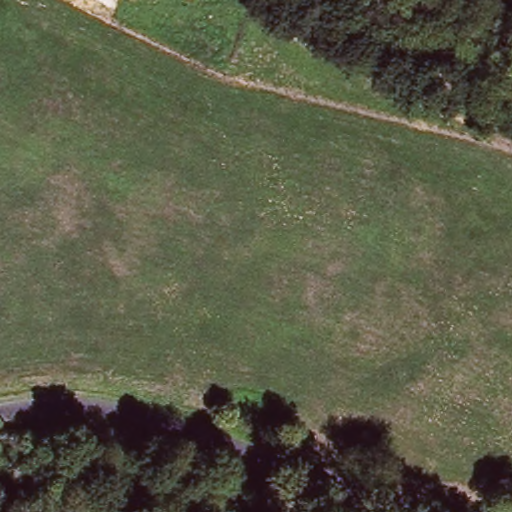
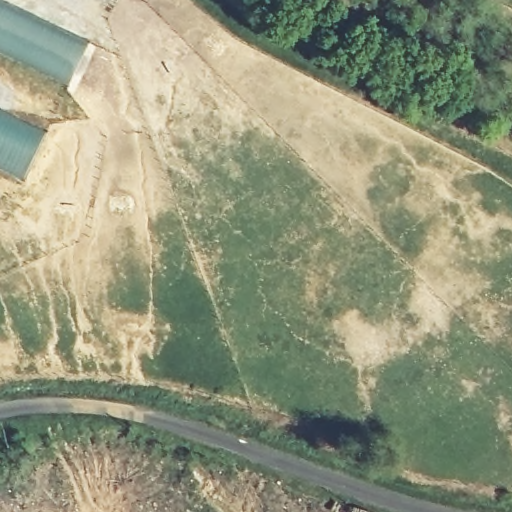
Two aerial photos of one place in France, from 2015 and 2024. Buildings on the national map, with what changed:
new [(0,53),(0,0),(3,0),(91,44),(68,87),(0,53)]
new [(0,170),(0,110),(47,134),(24,181),(0,170)]

